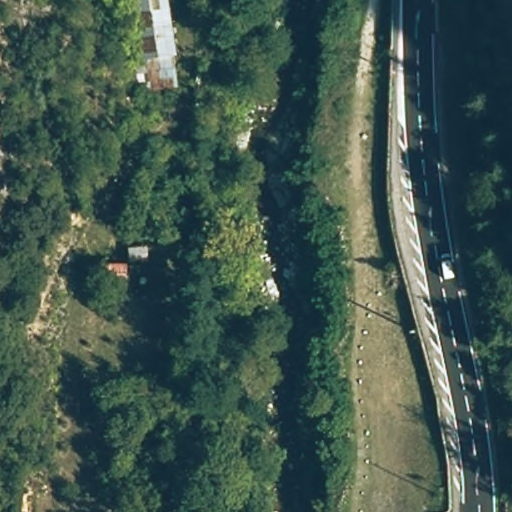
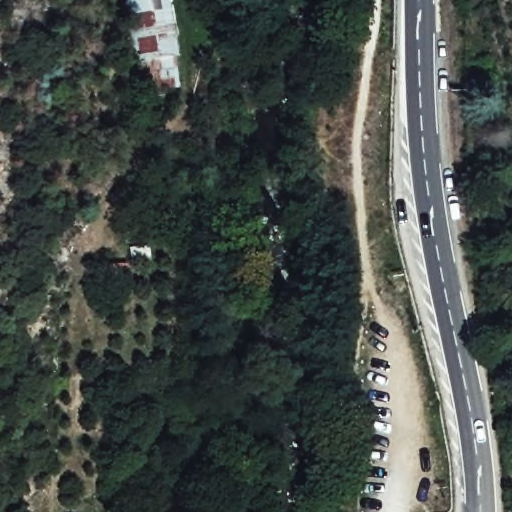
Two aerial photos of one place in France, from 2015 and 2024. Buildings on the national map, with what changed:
unchanged [(145,93),(133,0),(168,0),(180,88),(145,93)]

